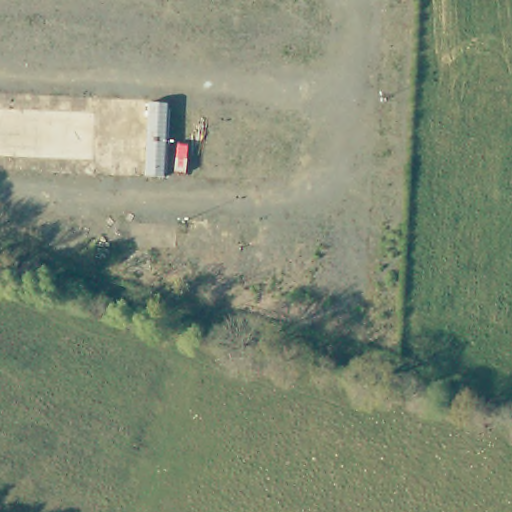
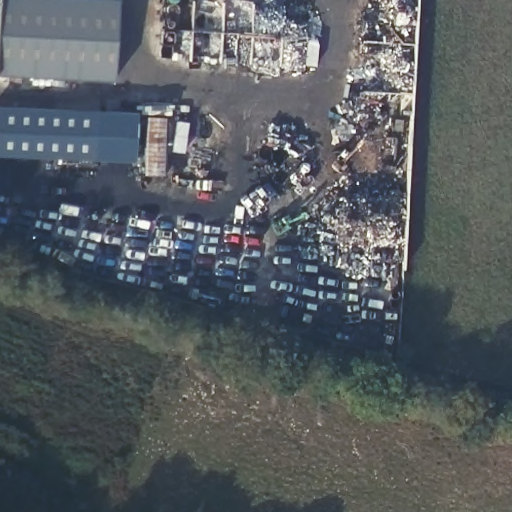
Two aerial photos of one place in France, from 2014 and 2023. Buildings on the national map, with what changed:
new [(0,75),(0,0),(117,0),(113,80),(0,75)]
new [(96,157),(0,154),(0,105),(97,110),(96,157)]
unchanged [(170,106),(165,180),(147,180),(151,105),(170,106)]
demolished [(177,112),(217,114),(214,144),(174,142),(177,112)]
demolished [(172,178),(174,153),(206,154),(208,150),(217,151),(215,181),(172,178)]

